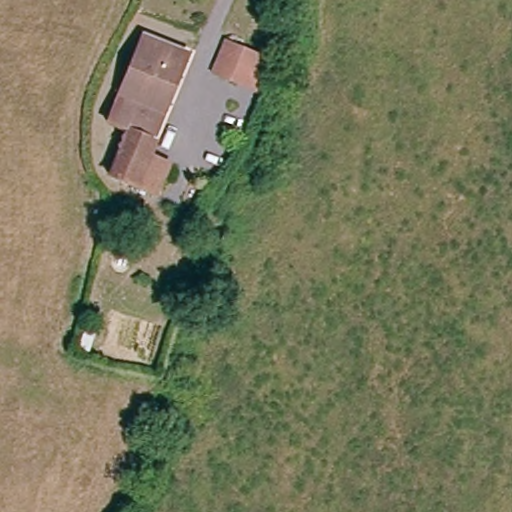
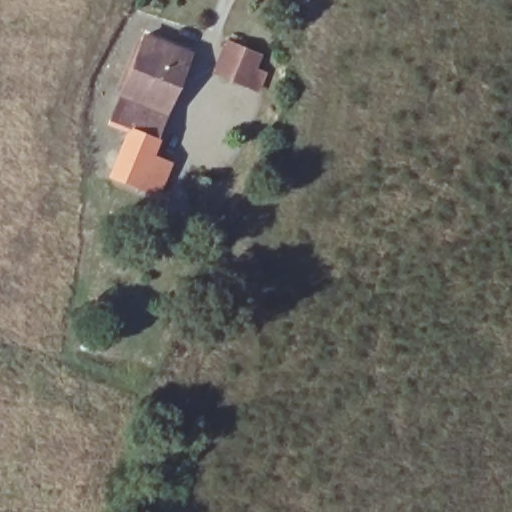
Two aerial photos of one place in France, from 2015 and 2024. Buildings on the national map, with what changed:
unchanged [(230,42),(256,54),(251,66),(242,87),(216,74),(230,42)]
unchanged [(181,63),(149,139),(125,128),(130,118),(111,109),(141,43),(181,63)]
unchanged [(149,139),(142,152),(165,162),(150,193),(116,177),(106,172),(107,171),(125,128),(149,139)]

